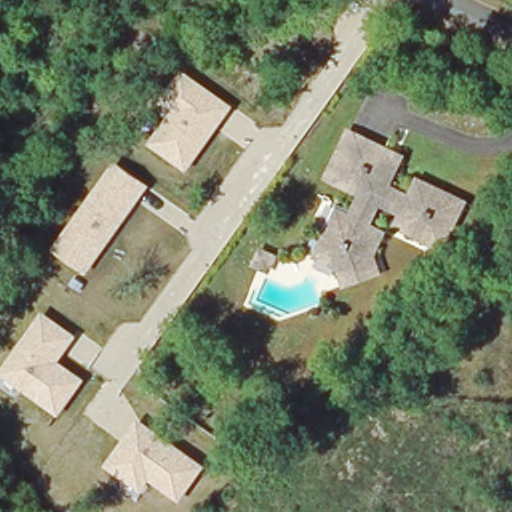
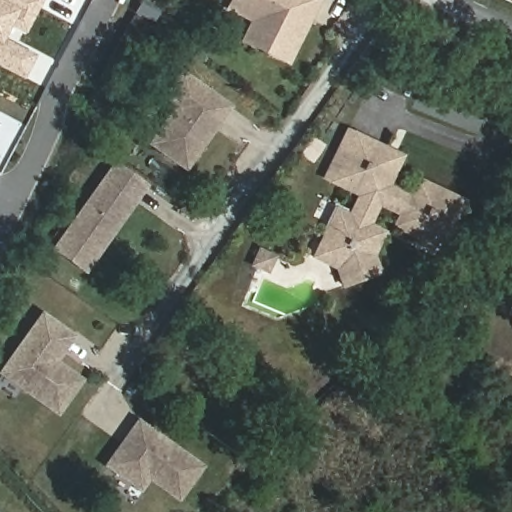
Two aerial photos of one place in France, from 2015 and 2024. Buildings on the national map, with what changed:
new [(27,30),(14,23),(5,38),(37,55),(24,81),(0,68),(0,0),(44,0),(27,30)]
new [(290,67),(241,43),(250,22),(226,10),(230,0),(320,0),(290,67)]
unchanged [(188,172),(148,144),(172,111),(160,102),(181,71),(234,107),(188,172)]
unchanged [(337,269),(312,259),(335,206),(347,210),(356,195),(321,179),(345,123),(405,151),(396,178),(409,187),(416,175),(473,202),(448,257),(395,234),(401,219),(384,210),(374,226),(386,230),(376,256),(383,278),(346,290),(337,269)]
unchanged [(87,274),(52,250),(115,161),(151,186),(87,274)]
unchanged [(59,361),(85,380),(59,417),(0,374),(0,371),(43,312),(77,336),(59,361)]
unchanged [(206,466),(179,503),(150,481),(141,493),(105,465),(138,419),(206,466)]

